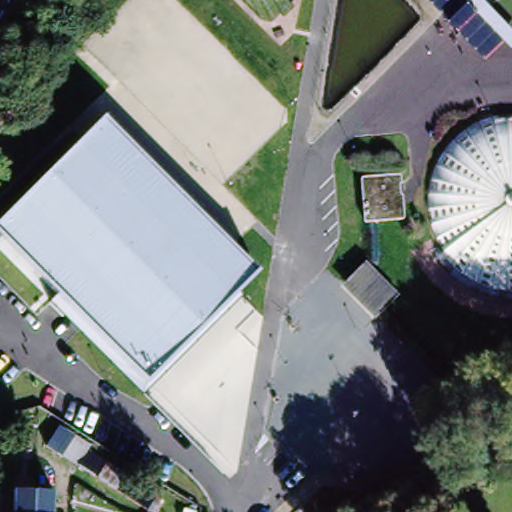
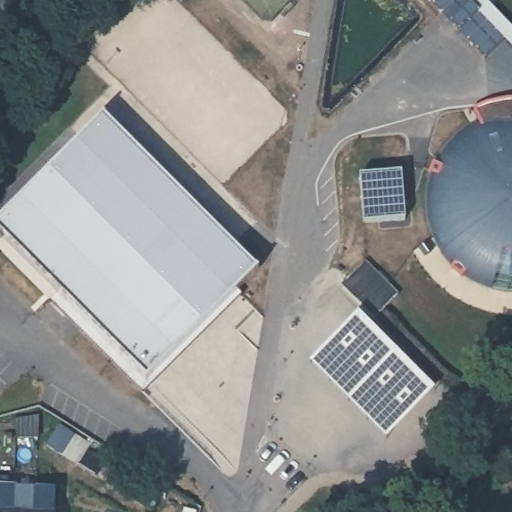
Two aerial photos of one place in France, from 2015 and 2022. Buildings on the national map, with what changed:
unchanged [(512,26),(512,48),(503,41),(486,60),(429,0),(487,0),(512,26)]
unchanged [(104,112),(254,261),(224,293),(135,382),(0,248),(0,217),(104,112)]
unchanged [(509,300),(507,299),(506,299),(504,299),(503,298),(502,298),(500,298),(499,297),(497,297),(494,297),(493,296),(489,296),(488,295),(487,295),(486,293),(484,293),(483,292),(481,292),(480,292),(479,291),(477,290),(476,289),(474,288),(473,288),(472,287),(471,286),(469,286),(468,285),(467,283),(466,283),(464,282),(463,281),(462,280),(461,279),(459,278),(459,277),(458,276),(457,275),(456,274),(454,273),(453,272),(452,271),(451,270),(451,268),(449,267),(449,266),(448,265),(447,263),(446,262),(445,261),(444,260),(443,258),(443,257),(442,256),(441,255),(440,253),(439,252),(439,251),(438,249),(438,247),(437,247),(437,245),(436,244),(436,242),(435,241),(434,240),(434,238),(434,237),(433,235),(433,234),(433,232),(432,231),(432,229),(432,227),(432,226),(431,225),(431,223),(431,222),(431,220),(431,219),(431,217),(431,216),(431,214),(431,212),(431,211),(431,210),(431,208),(431,207),(431,205),(431,204),(431,202),(432,201),(432,199),(432,197),(432,196),(433,195),(433,193),(433,192),(434,190),(434,189),(434,187),(435,186),(436,185),(437,182),(436,181),(438,180),(438,177),(439,176),(439,175),(440,174),(441,172),(442,171),(443,170),(443,168),(444,167),(444,166),(446,164),(447,163),(448,162),(448,161),(449,160),(450,158),(451,157),(452,156),(453,155),(454,154),(455,152),(457,152),(458,151),(459,150),(459,149),(461,147),(462,147),(463,146),(464,145),(466,144),(467,142),(468,142),(469,141),(471,140),(472,140),(473,139),(474,138),(476,137),(477,137),(479,136),(479,135),(481,135),(483,134),(484,133),(485,132),(487,132),(488,132),(489,131),(491,131),(493,130),(494,130),(495,130),(497,129),(498,129),(499,129),(501,128),(503,128),(504,127),(506,127),(507,127),(509,127),(510,127),(512,127),(512,300),(510,300),(509,300)]
unchanged [(352,178),(391,174),(396,213),(357,217),(352,178)]
unchanged [(359,266),(392,297),(371,317),(339,286),(359,266)]
new [(224,293),(231,300),(142,390),(135,382),(224,293)]
new [(356,310),(433,386),(384,434),(308,357),(356,310)]
unchanged [(70,421),(140,466),(127,493),(53,450),(70,421)]
unchanged [(19,499),(38,500),(38,493),(59,494),(59,512),(0,512),(0,498),(19,499)]

